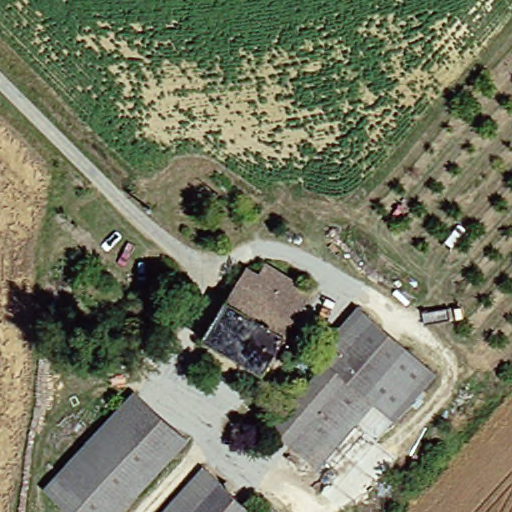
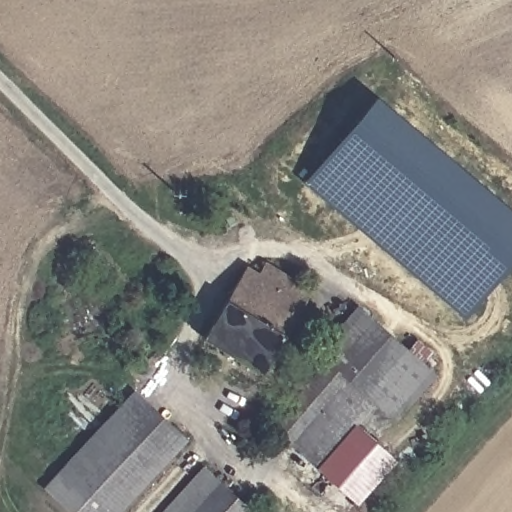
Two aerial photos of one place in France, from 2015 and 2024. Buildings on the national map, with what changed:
new [(512,210),(512,265),(466,318),(304,181),(377,95),(512,210)]
unchanged [(205,339),(245,270),(257,277),(264,265),(298,285),(310,293),(304,305),(262,375),(205,339)]
unchanged [(434,372),(400,416),(374,399),(322,466),(280,432),(369,318),(434,372)]
unchanged [(117,412),(134,391),(186,438),(171,457),(117,412)]
unchanged [(124,512),(74,512),(50,492),(117,412),(171,457),(124,512)]
new [(395,460),(356,503),(322,466),(354,425),(395,460)]
unchanged [(210,470),(256,512),(170,512),(210,470)]

